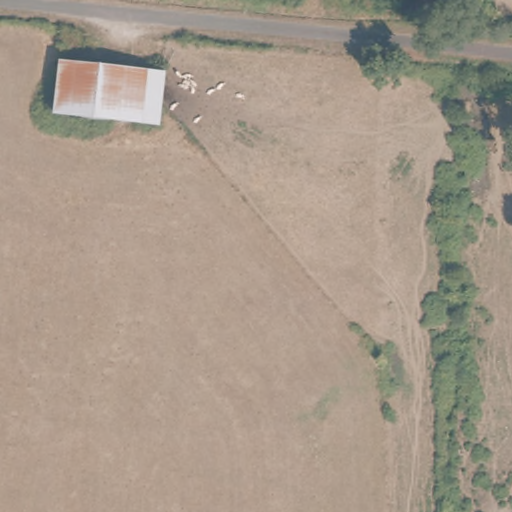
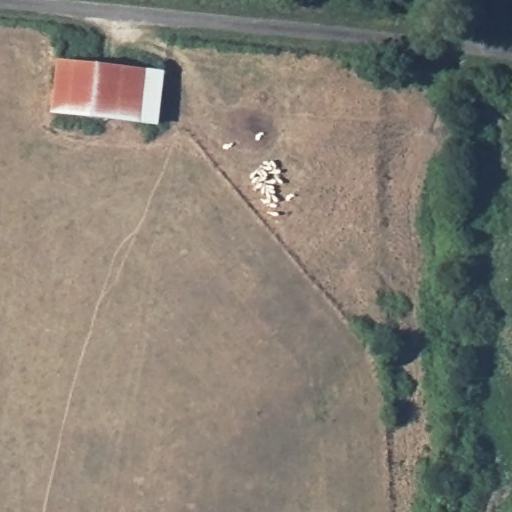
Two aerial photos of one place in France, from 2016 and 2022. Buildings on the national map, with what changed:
unchanged [(63,64),(169,74),(164,125),(54,115),(63,64)]

